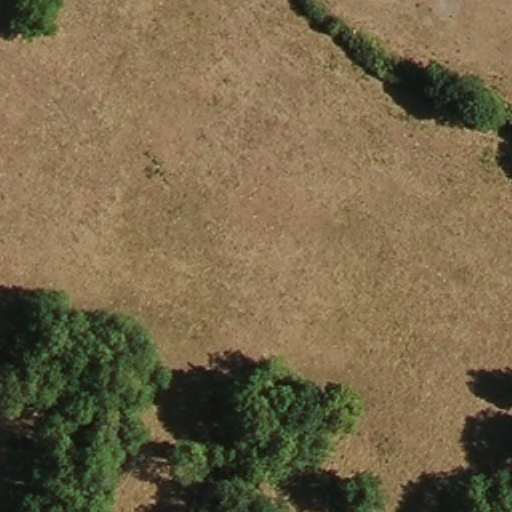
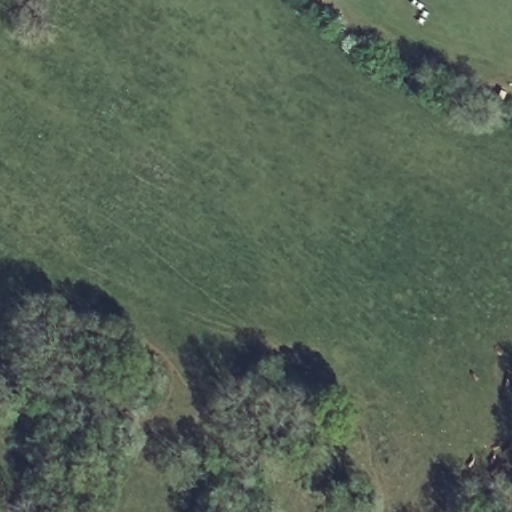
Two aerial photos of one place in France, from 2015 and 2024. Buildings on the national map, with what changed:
[]

